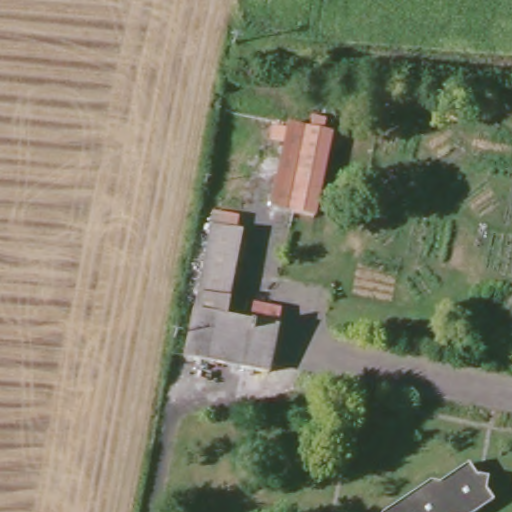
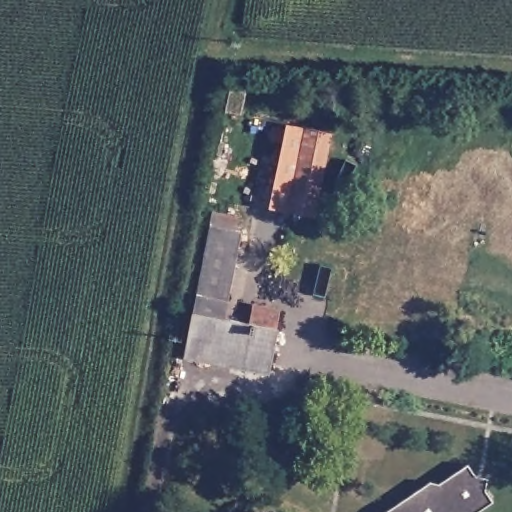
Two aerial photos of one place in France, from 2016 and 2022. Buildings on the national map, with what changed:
unchanged [(332,137),(316,221),(286,215),(301,130),(332,137)]
unchanged [(231,219),(229,234),(236,236),(219,323),(243,328),(246,309),(271,314),(259,374),(178,359),(205,215),(231,219)]
unchanged [(486,470),(483,485),(492,498),(472,512),(381,512),(381,510),(433,474),(437,479),(467,459),(473,468),(486,470)]

